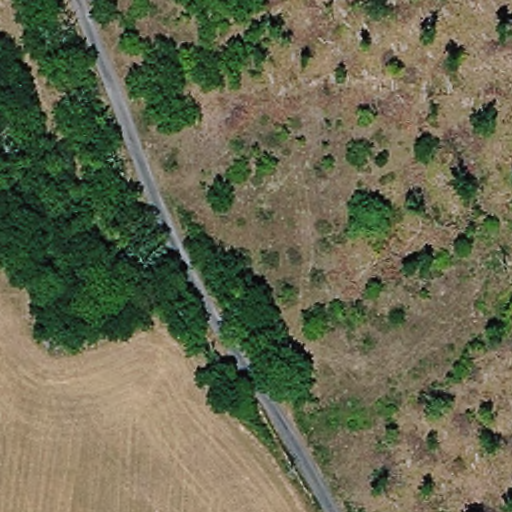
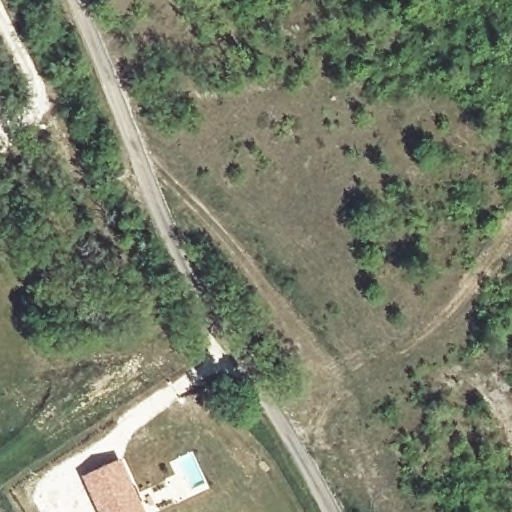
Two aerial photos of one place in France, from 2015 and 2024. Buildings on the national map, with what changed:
new [(144,512),(97,512),(81,476),(121,459),(144,512)]

